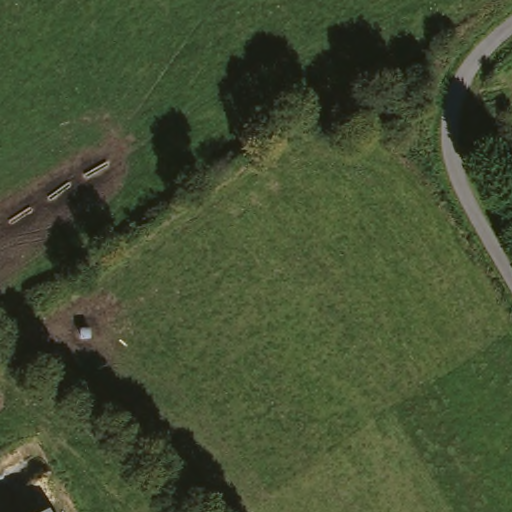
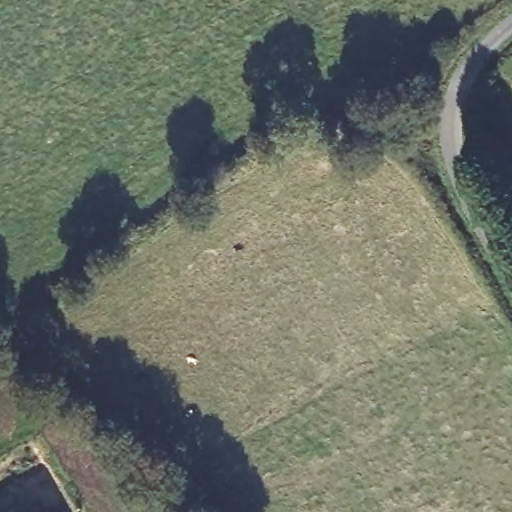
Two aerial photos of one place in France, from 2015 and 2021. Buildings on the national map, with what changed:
unchanged [(50,512),(45,512),(49,510),(50,512)]

